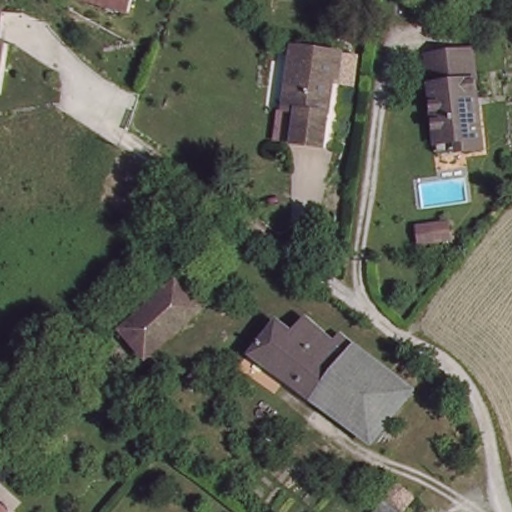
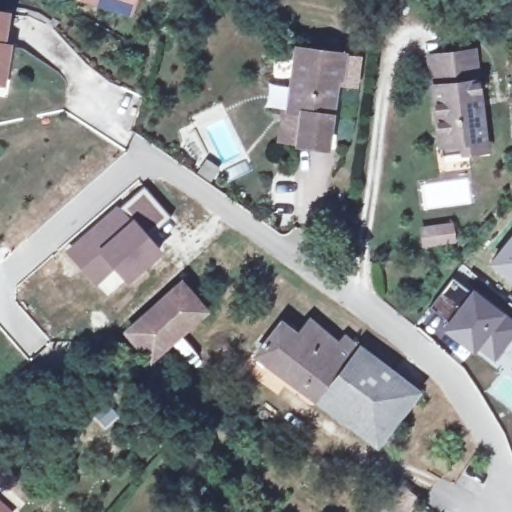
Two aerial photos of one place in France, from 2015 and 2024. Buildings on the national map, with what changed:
unchanged [(131,5),(115,0),(132,0),(131,5)]
unchanged [(6,15),(0,51),(0,14),(6,15)]
unchanged [(287,111),(292,111),(300,47),(345,52),(342,79),(337,78),(330,150),(303,146),(283,145),(287,111)]
unchanged [(7,52),(1,87),(0,87),(0,51),(7,52)]
unchanged [(488,152),(443,157),(430,58),(475,54),(488,152)]
new [(209,181),(197,174),(205,161),(217,169),(209,181)]
new [(140,186),(167,217),(151,232),(147,227),(140,235),(155,252),(122,280),(97,251),(106,244),(93,228),(140,186)]
unchanged [(457,244),(422,249),(419,227),(455,222),(457,244)]
new [(106,244),(97,251),(122,280),(104,296),(65,252),(93,228),(106,244)]
new [(512,283),(487,263),(512,231),(512,283)]
new [(506,328),(482,356),(465,342),(461,348),(445,335),(450,330),(420,303),(444,275),(506,328)]
unchanged [(205,311),(150,357),(125,327),(180,282),(205,311)]
unchanged [(337,354),(344,346),(413,401),(374,455),(256,363),(277,334),(294,346),(306,331),(337,354)]
unchanged [(411,512),(378,512),(398,491),(415,507),(411,512)]
unchanged [(0,512),(0,509),(4,512),(0,512)]

